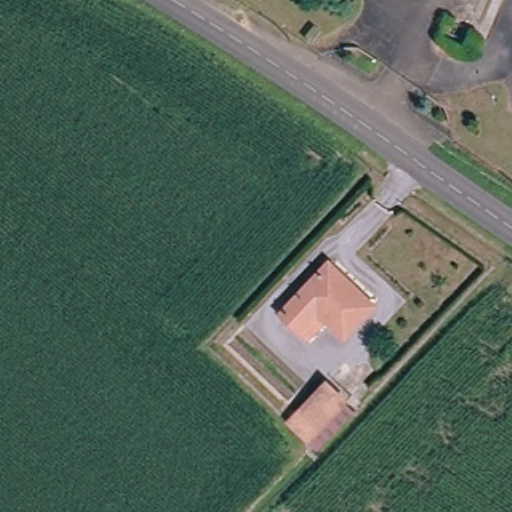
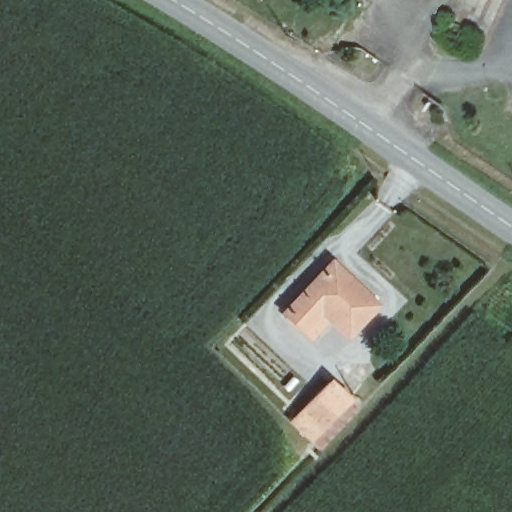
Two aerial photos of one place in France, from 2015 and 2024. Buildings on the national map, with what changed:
unchanged [(330,259),(377,300),(345,336),(320,314),(305,329),(285,309),(330,259)]
unchanged [(323,377),(350,398),(310,441),(284,419),(323,377)]

